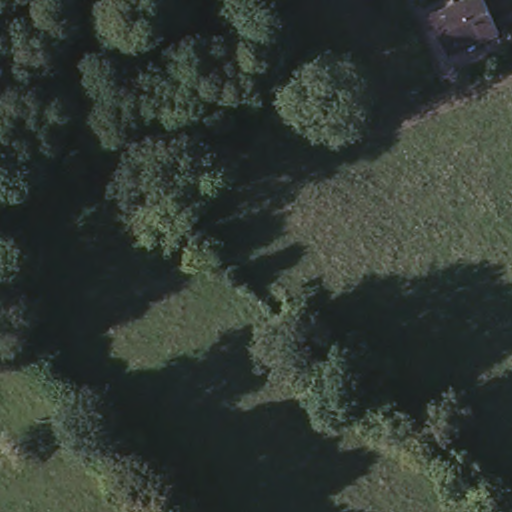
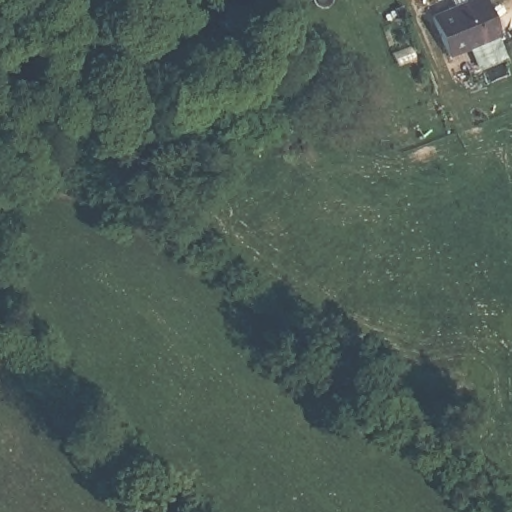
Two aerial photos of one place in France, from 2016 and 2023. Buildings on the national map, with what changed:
unchanged [(488,0),(505,35),(454,59),(434,20),(476,0),(488,0)]

